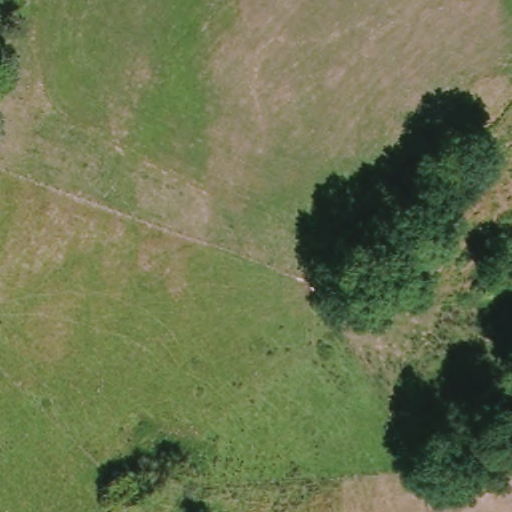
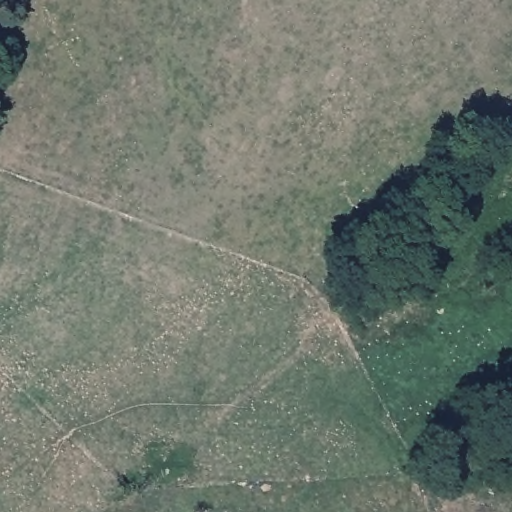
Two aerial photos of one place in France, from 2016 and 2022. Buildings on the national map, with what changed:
[]

